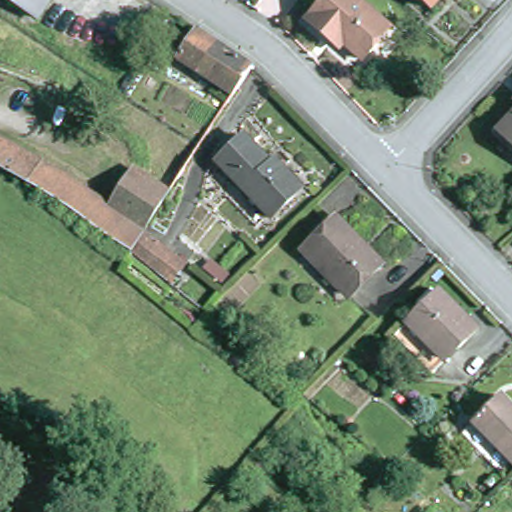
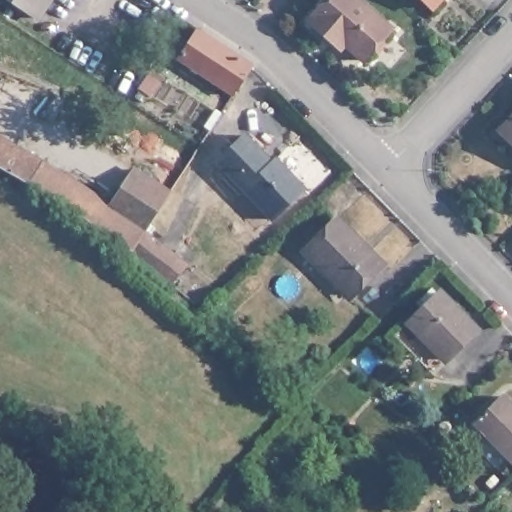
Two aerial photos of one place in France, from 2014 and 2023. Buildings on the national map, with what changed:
unchanged [(33,20),(2,0),(46,0),(33,20)]
unchanged [(321,35),(304,18),(320,0),(357,0),(389,30),(360,60),(341,43),(336,49),(321,35)]
unchanged [(429,10),(418,0),(438,0),(429,10)]
unchanged [(178,57),(197,28),(253,64),(235,91),(234,93),(178,57)]
unchanged [(502,131),(512,120),(512,142),(502,131)]
unchanged [(271,164),(276,161),(301,189),(269,216),(218,160),(246,136),(271,164)]
unchanged [(0,166),(0,137),(44,161),(33,184),(0,166)]
unchanged [(131,248),(33,184),(44,161),(108,204),(144,227),(131,248)]
unchanged [(108,204),(135,165),(169,189),(144,227),(108,204)]
unchanged [(376,260),(345,290),(301,248),(333,217),(376,260)]
unchanged [(144,227),(186,267),(171,283),(131,248),(144,227)]
unchanged [(479,319),(436,362),(399,325),(442,282),(479,319)]
unchanged [(477,419),(504,393),(512,401),(512,454),(477,419)]

